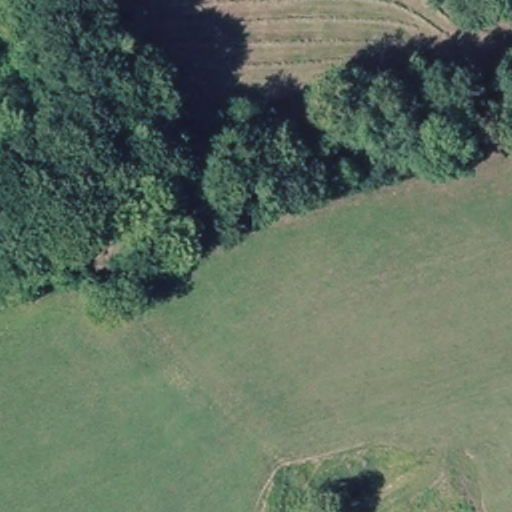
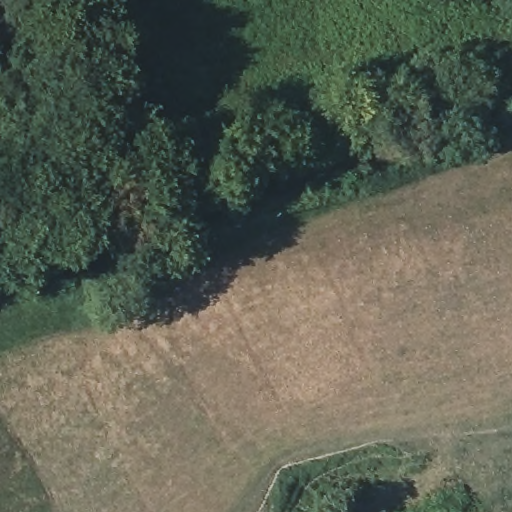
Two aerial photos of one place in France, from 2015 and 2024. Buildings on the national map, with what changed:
[]

